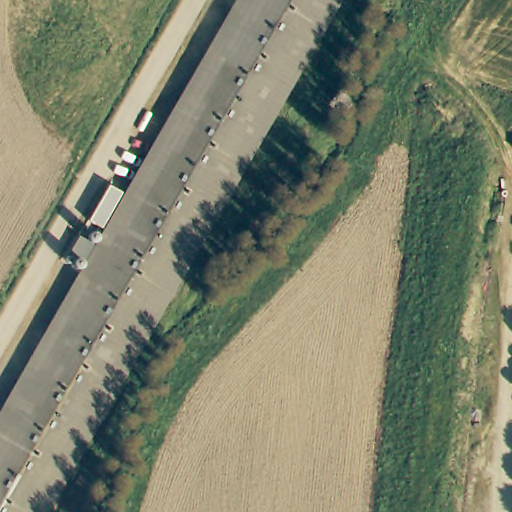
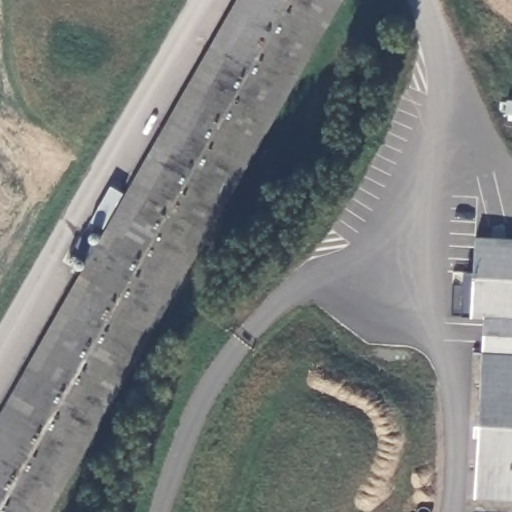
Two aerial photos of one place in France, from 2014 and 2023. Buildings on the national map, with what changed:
unchanged [(87,259),(76,252),(82,241),(95,247),(236,0),(340,0),(49,512),(0,512),(0,413),(87,259)]
new [(478,437),(473,437),(474,413),(480,413),(484,318),(471,318),(476,236),(512,239),(512,500),(474,498),(478,437)]

